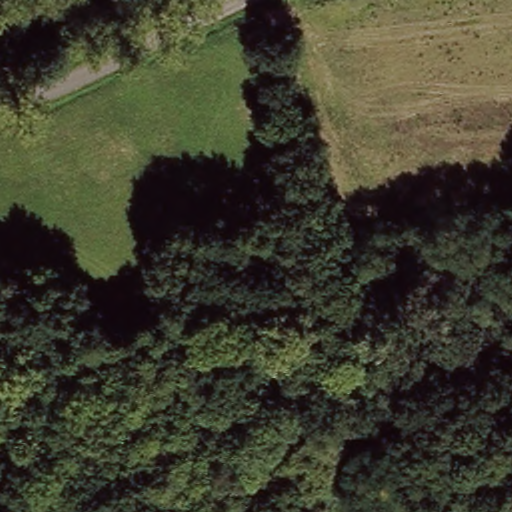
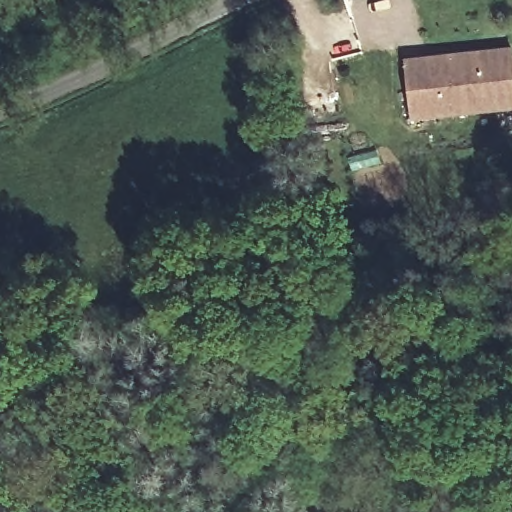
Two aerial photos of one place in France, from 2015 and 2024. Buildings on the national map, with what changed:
new [(512,46),(512,108),(409,119),(403,56),(512,46)]

